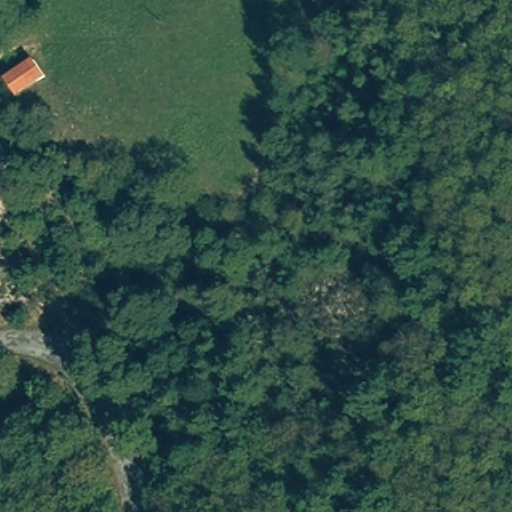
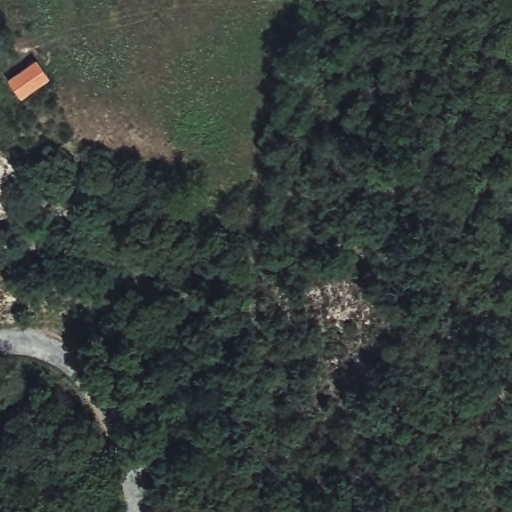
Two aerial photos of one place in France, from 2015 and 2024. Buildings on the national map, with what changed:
unchanged [(11,83),(42,60),(55,83),(26,106),(11,83)]

